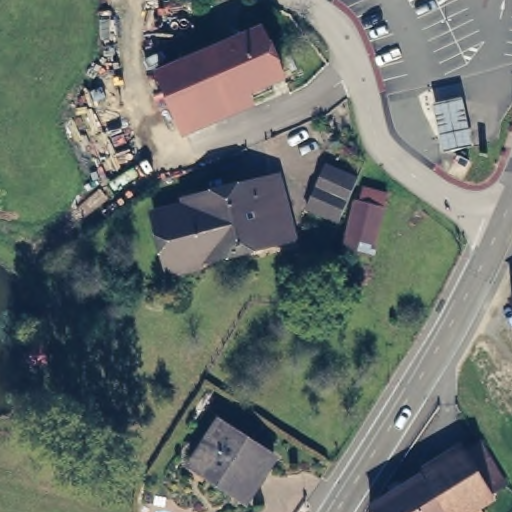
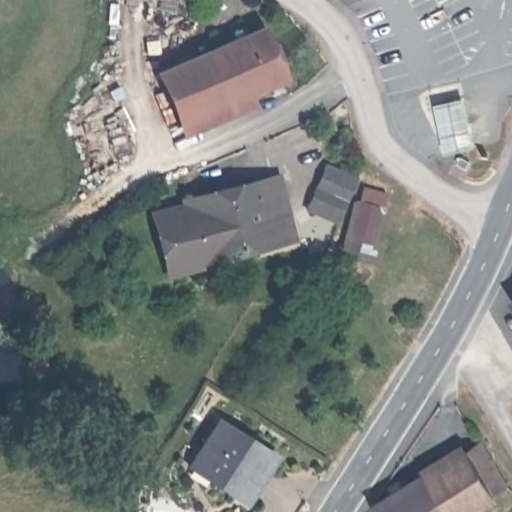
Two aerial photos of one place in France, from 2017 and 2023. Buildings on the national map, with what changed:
unchanged [(260,26),(282,75),(180,117),(158,67),(260,26)]
unchanged [(460,100),(471,149),(443,156),(431,106),(460,100)]
unchanged [(357,176),(333,222),(301,205),(322,157),(357,176)]
unchanged [(205,261),(205,264),(171,270),(160,210),(190,204),(188,198),(283,178),(296,244),(268,250),(267,247),(245,252),(236,253),(205,261)]
unchanged [(390,194),(375,258),(340,251),(350,199),(360,201),(367,185),(390,194)]
unchanged [(511,303),(512,303),(512,304),(511,303)]
unchanged [(275,462),(250,498),(234,488),(230,495),(207,478),(212,472),(197,460),(222,422),(275,462)]
unchanged [(456,447),(457,449),(471,441),(497,483),(483,492),(485,496),(469,505),(474,512),(367,512),(362,504),(419,470),(456,447)]

